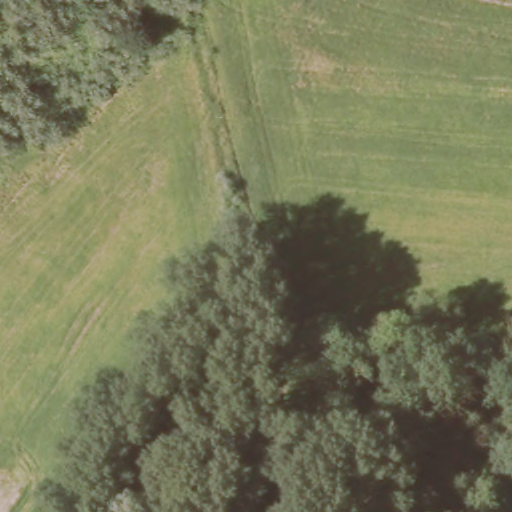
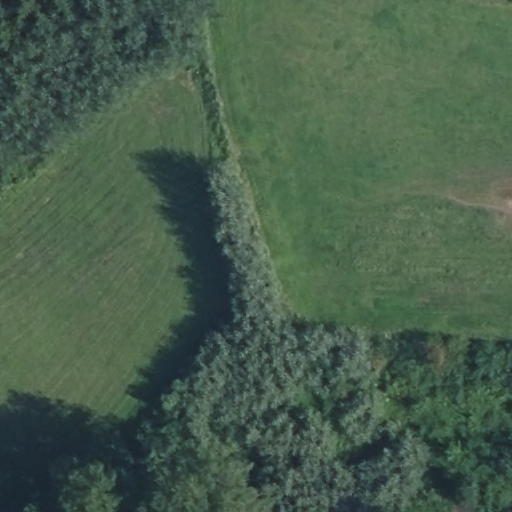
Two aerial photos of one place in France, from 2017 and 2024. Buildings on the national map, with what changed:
unchanged [(485,503),(485,512),(458,512),(458,504),(458,502),(485,503)]

